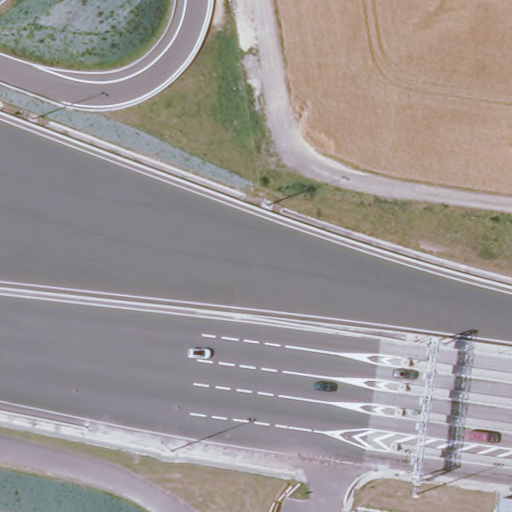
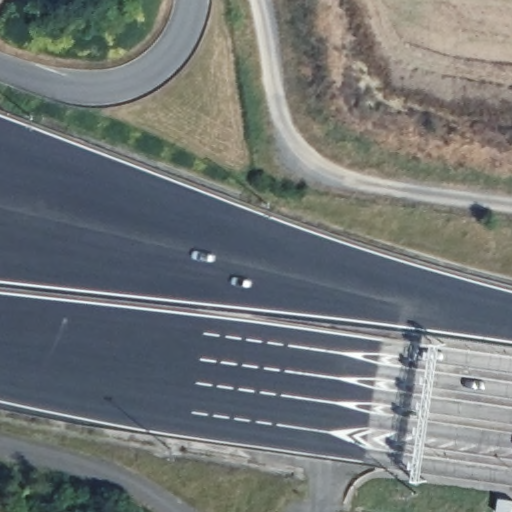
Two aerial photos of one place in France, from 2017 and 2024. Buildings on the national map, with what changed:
unchanged [(433,336),(430,477),(418,477),(420,336),(433,336)]

